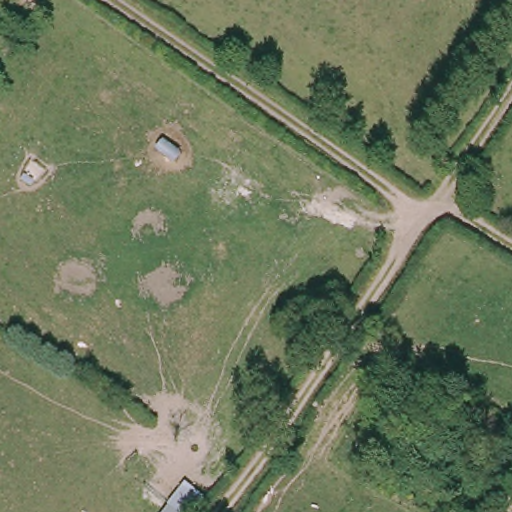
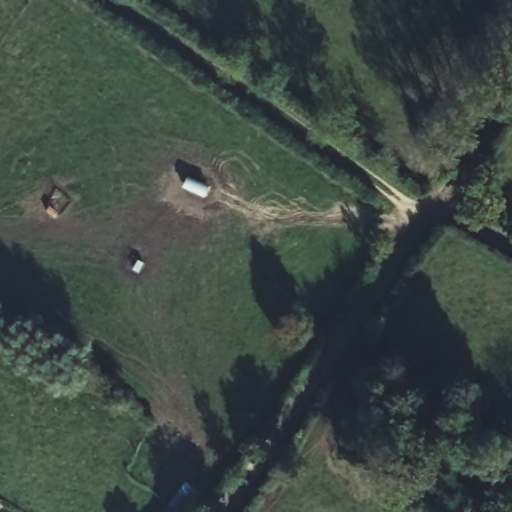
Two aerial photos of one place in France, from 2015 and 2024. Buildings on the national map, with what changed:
unchanged [(164,512),(171,504),(180,512),(164,512)]

